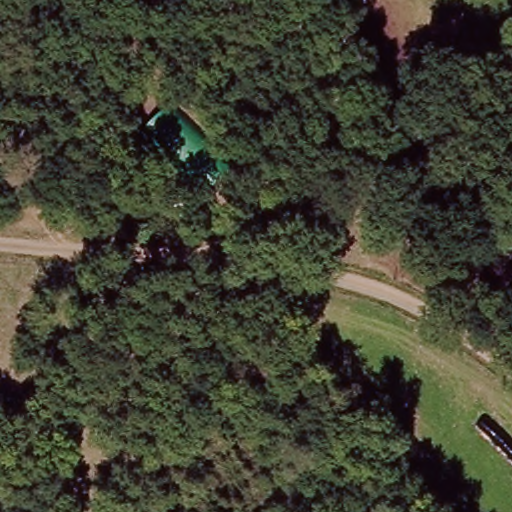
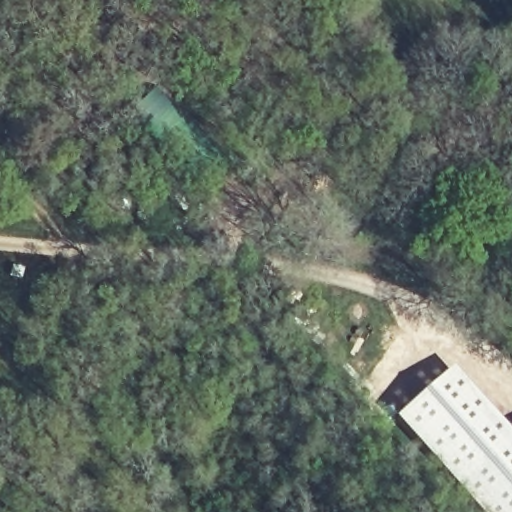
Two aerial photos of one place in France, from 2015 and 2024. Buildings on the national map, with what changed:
unchanged [(141,137),(172,105),(232,162),(208,201),(141,137)]
new [(512,433),(512,512),(473,512),(392,421),(452,367),(512,433)]

